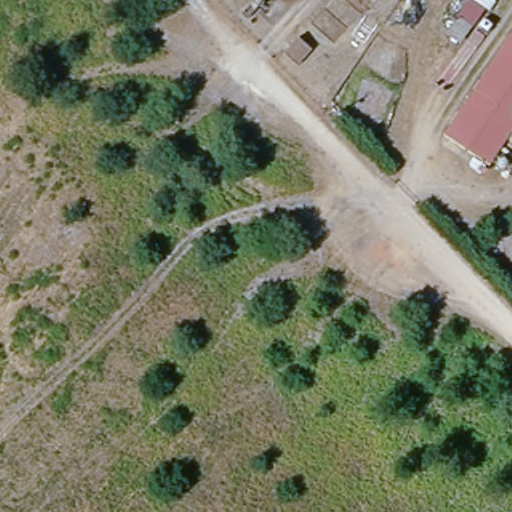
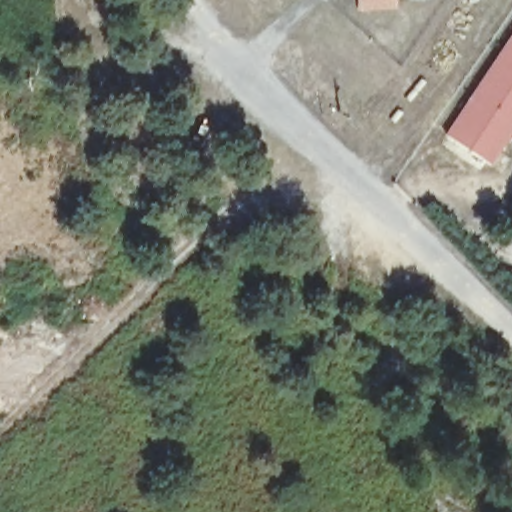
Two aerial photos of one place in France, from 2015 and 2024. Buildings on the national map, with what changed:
new [(354,8),(354,0),(395,0),(395,7),(354,8)]
unchanged [(485,164),(446,132),(512,37),(512,127),(485,164)]

